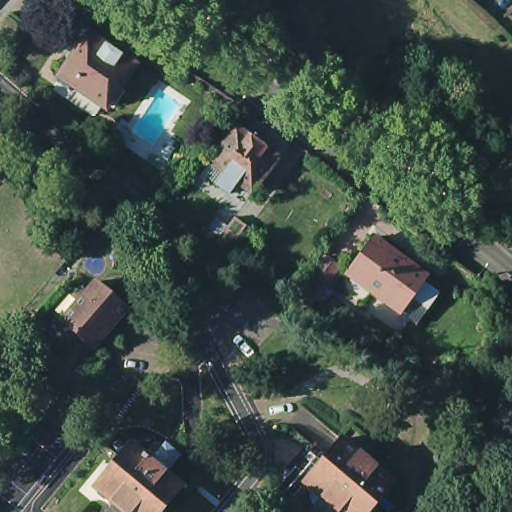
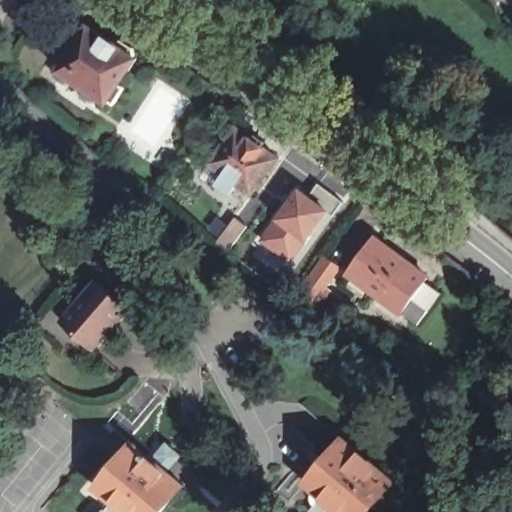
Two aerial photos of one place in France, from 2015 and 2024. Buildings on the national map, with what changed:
unchanged [(60,51),(67,42),(74,46),(87,27),(110,43),(118,40),(130,49),(132,57),(135,60),(117,85),(123,90),(112,106),(106,102),(105,105),(57,72),(68,56),(60,51)]
unchanged [(281,160),(255,195),(240,185),(231,195),(220,186),(223,180),(210,171),(240,129),(281,160)]
new [(306,195),(319,185),(339,200),(290,264),(252,238),(291,187),(306,195)]
unchanged [(246,226),(228,251),(215,242),(233,217),(246,226)]
unchanged [(432,312),(416,300),(405,315),(350,275),(376,239),(431,280),(428,283),(445,295),(432,312)]
unchanged [(337,267),(307,309),(293,299),(324,257),(337,267)]
unchanged [(125,310),(91,350),(60,323),(94,283),(125,310)]
unchanged [(170,438),(164,445),(158,441),(164,434),(170,438)]
unchanged [(156,442),(165,450),(150,466),(176,487),(156,512),(118,512),(95,493),(89,488),(113,459),(125,445),(141,458),(156,442)]
unchanged [(304,487),(322,465),(341,442),(391,485),(369,512),(334,512),(309,491),(304,487)]

